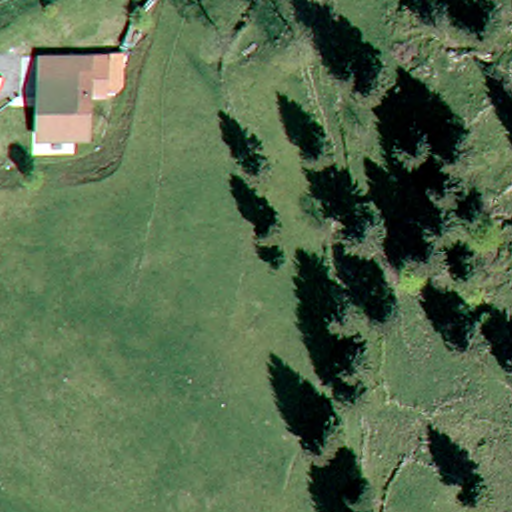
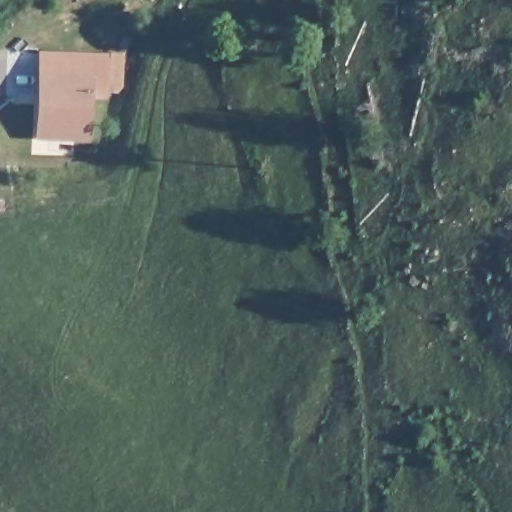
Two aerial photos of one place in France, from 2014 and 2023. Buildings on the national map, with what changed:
unchanged [(37,141),(39,51),(110,52),(124,52),(124,87),(117,92),(107,89),(107,94),(94,93),(94,81),(45,78),(44,99),(49,99),(47,144),(37,141)]
unchanged [(92,144),(47,144),(49,99),(44,99),(45,78),(94,81),(92,144)]

